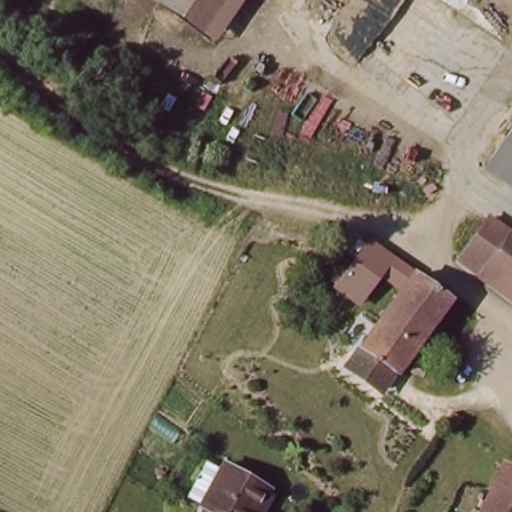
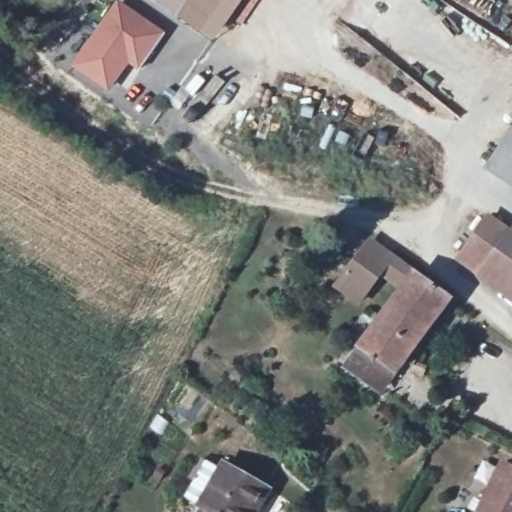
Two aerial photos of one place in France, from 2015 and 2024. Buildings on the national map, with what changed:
new [(109,93),(72,66),(119,0),(120,0),(166,34),(140,70),(130,64),(109,93)]
unchanged [(156,0),(246,0),(213,44),(156,0)]
unchanged [(512,124),(512,184),(483,163),(512,124)]
unchanged [(477,220),(504,229),(512,235),(512,291),(480,267),(456,250),(477,220)]
unchanged [(338,286),(354,259),(377,273),(359,300),(338,286)]
unchanged [(435,284),(438,286),(450,293),(383,393),(367,383),(355,374),(349,370),(387,314),(415,270),(435,284)]
unchanged [(222,479),(215,475),(228,451),(271,475),(258,500),(265,504),(260,512),(204,512),(222,479)]
unchanged [(505,456),(512,460),(512,512),(478,512),(500,467),(505,456)]

